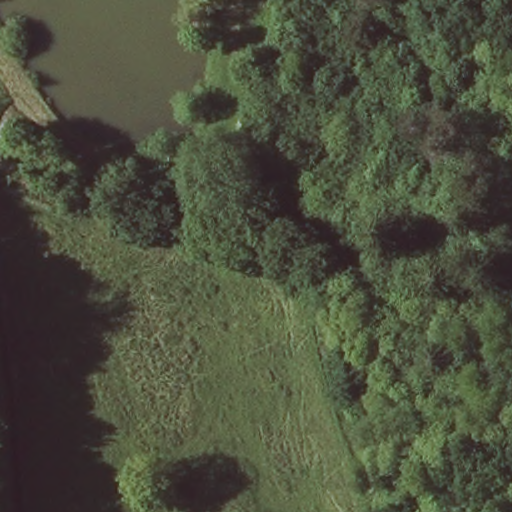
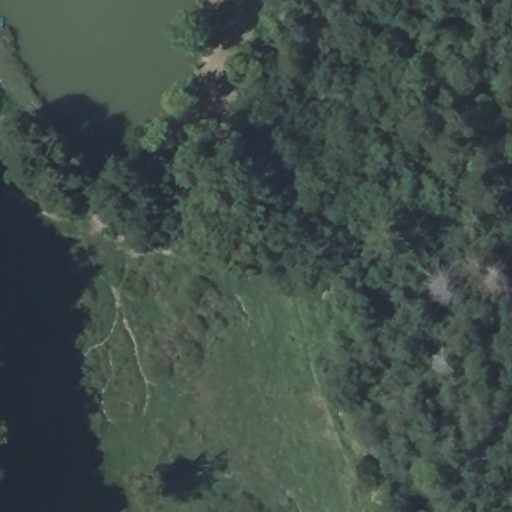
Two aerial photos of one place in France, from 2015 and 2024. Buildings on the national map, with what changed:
unchanged [(0,136),(0,125),(5,129),(0,136)]

